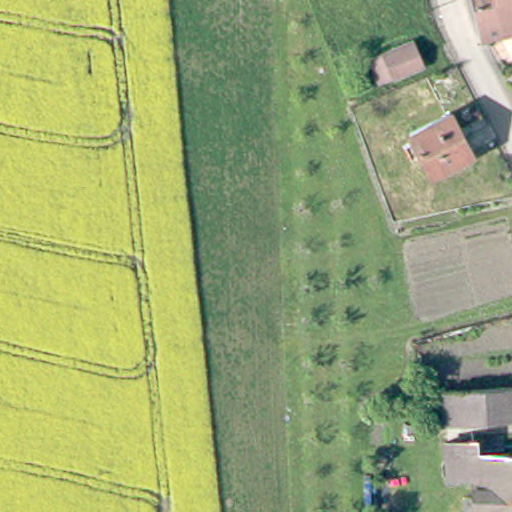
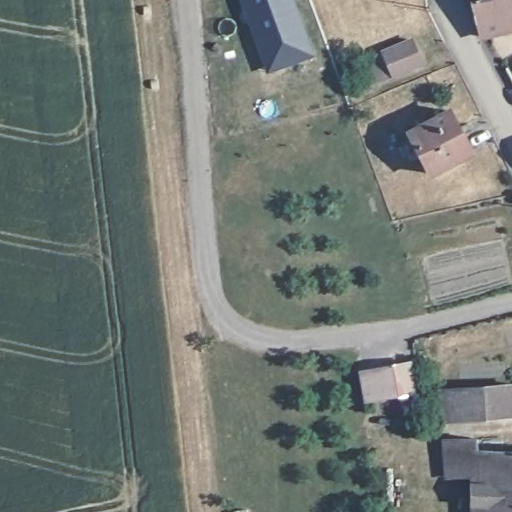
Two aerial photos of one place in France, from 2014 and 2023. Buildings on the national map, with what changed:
new [(315,56),(267,74),(239,0),(295,0),(315,56)]
unchanged [(487,35),(477,0),(512,0),(512,28),(490,35),(487,35)]
unchanged [(383,82),(372,57),(412,39),(425,63),(383,82)]
unchanged [(435,170),(413,131),(452,110),(474,150),(435,170)]
new [(417,395),(365,403),(359,370),(412,361),(417,395)]
unchanged [(447,385),(512,383),(512,413),(447,415),(447,385)]
unchanged [(445,477),(445,438),(483,437),(484,447),(512,447),(512,512),(474,512),(475,479),(445,477)]

